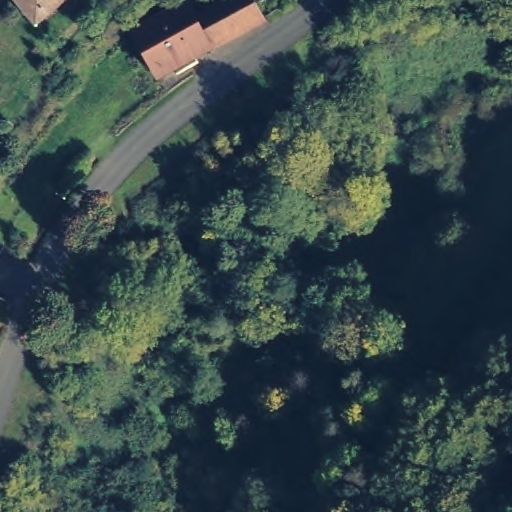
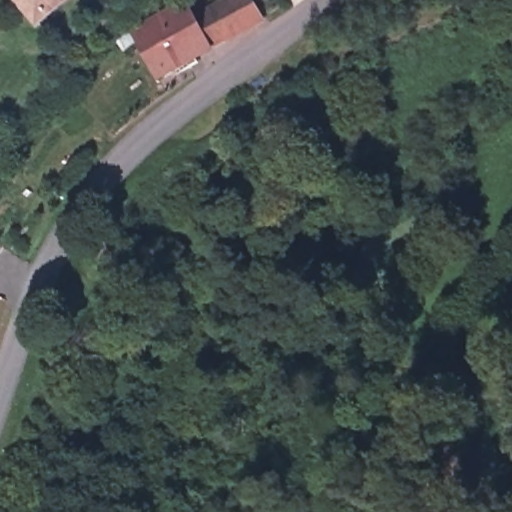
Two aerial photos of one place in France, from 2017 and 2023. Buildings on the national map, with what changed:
unchanged [(47,25),(20,0),(72,0),(47,25)]
unchanged [(259,27),(158,73),(138,25),(194,0),(202,13),(233,0),(247,0),(259,27)]

